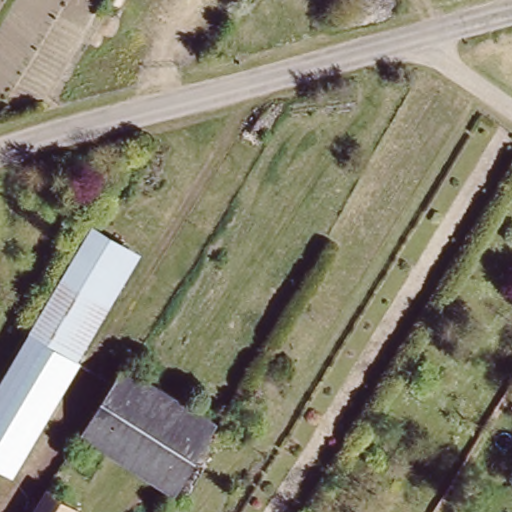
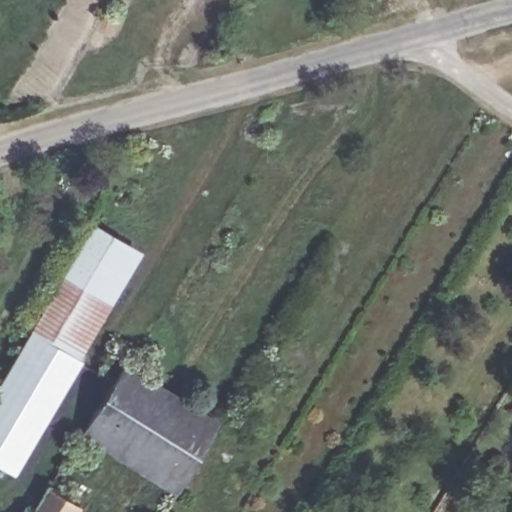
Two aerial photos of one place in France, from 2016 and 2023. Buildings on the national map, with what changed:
unchanged [(94,224),(141,252),(76,359),(29,331),(94,224)]
unchanged [(29,331),(76,359),(80,362),(63,390),(12,360),(29,331)]
unchanged [(63,390),(11,475),(0,468),(0,379),(12,360),(63,390)]
unchanged [(95,408),(120,365),(216,418),(176,488),(80,433),(95,408)]
unchanged [(70,508),(67,512),(31,512),(43,493),(70,508)]

